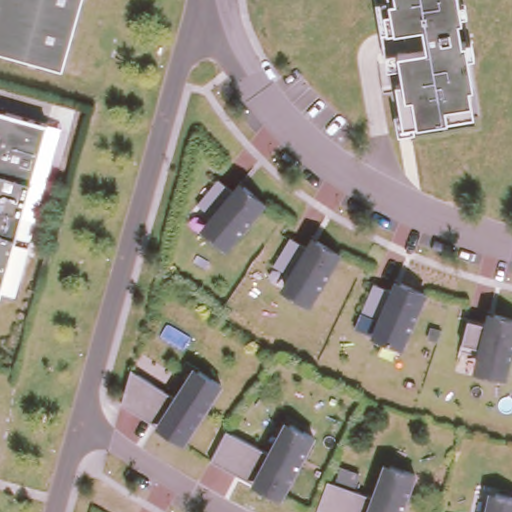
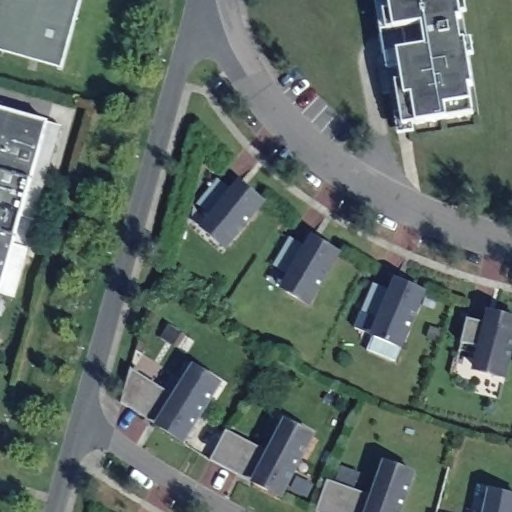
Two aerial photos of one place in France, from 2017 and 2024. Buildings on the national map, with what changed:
unchanged [(77,0),(57,68),(0,52),(0,0),(77,0)]
unchanged [(390,113),(396,112),(391,82),(397,81),(395,67),(382,69),(380,54),(392,51),(401,50),(398,28),(382,31),(376,32),(371,1),(377,0),(453,0),(453,2),(459,1),(461,12),(455,13),(456,18),(451,19),(455,41),(460,40),(466,39),(468,55),(462,56),(467,86),(463,86),(468,114),(408,124),(409,131),(393,134),(390,113)]
unchanged [(16,217),(30,221),(24,240),(10,236),(8,244),(22,247),(9,297),(0,294),(0,111),(42,122),(16,217)]
unchanged [(206,232),(216,220),(197,204),(217,179),(236,195),(244,186),(264,202),(226,249),(206,232)]
unchanged [(304,305),(281,292),(289,278),(268,266),(284,237),(306,250),(312,241),(334,254),(304,305)]
unchanged [(401,347),(377,337),(383,323),(361,313),(373,283),(396,293),(400,282),(424,293),(401,347)]
unchanged [(479,372),(483,356),(459,350),(467,318),(491,325),(493,313),(512,318),(512,346),(504,378),(479,372)]
unchanged [(120,402),(130,368),(174,397),(177,392),(182,395),(199,370),(221,383),(183,442),(156,425),(141,416),(120,402)]
unchanged [(205,460),(221,430),(263,452),(266,447),(271,450),(285,423),(308,436),(276,497),(247,482),(231,474),(205,460)]
unchanged [(322,480),(367,496),(369,491),(374,492),(384,465),(409,473),(395,512),(310,512),(322,480)]
unchanged [(490,492),(512,497),(512,512),(485,512),(490,492)]

